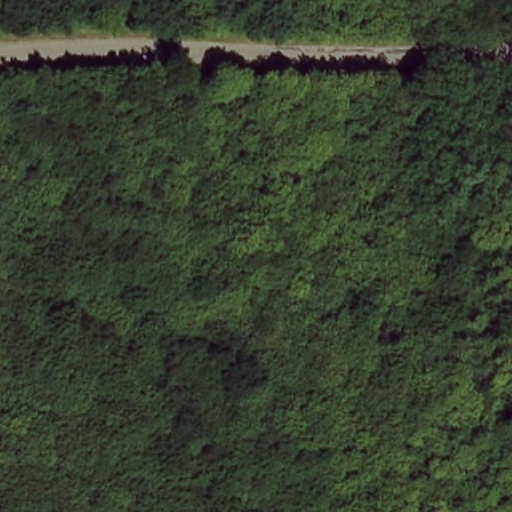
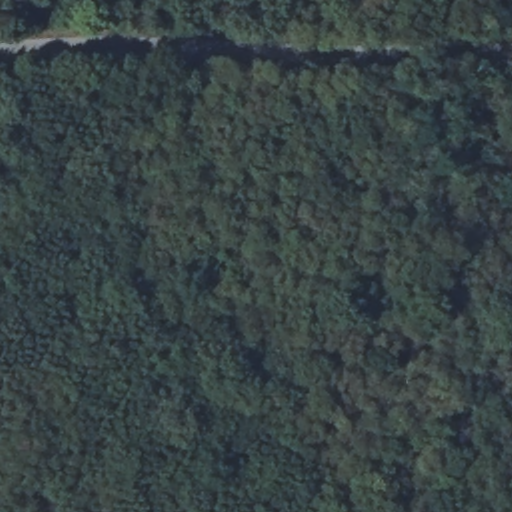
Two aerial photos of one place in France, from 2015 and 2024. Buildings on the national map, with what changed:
[]

